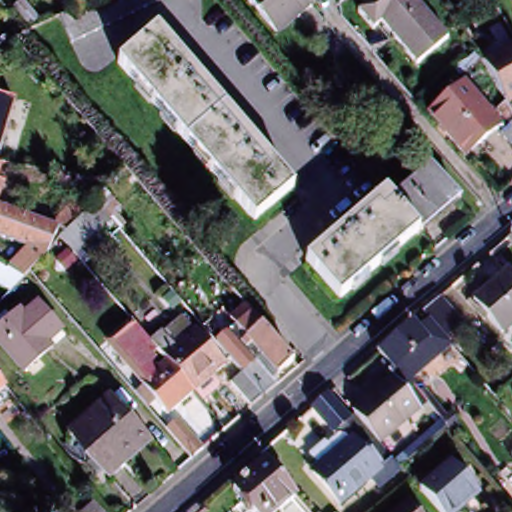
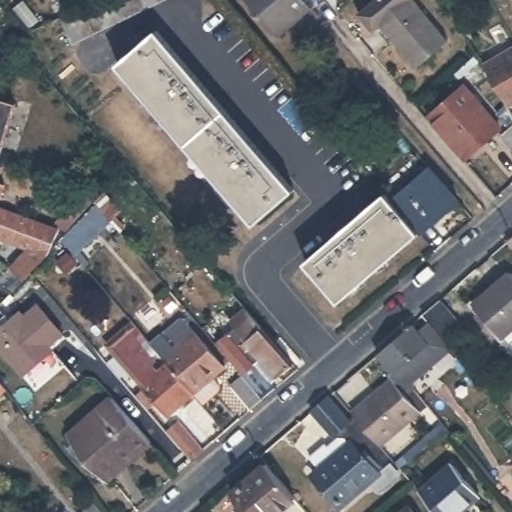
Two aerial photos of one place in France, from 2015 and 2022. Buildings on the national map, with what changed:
unchanged [(305,27),(301,22),(283,39),(251,1),(251,0),(306,0),(312,7),(318,16),(305,27)]
unchanged [(312,7),(306,0),(320,0),(312,7)]
unchanged [(448,40),(417,67),(381,25),(373,32),(358,15),(376,0),(414,0),(448,40)]
unchanged [(23,2),(39,22),(29,30),(12,10),(23,2)]
unchanged [(296,191),(257,225),(120,65),(159,31),(296,191)]
unchanged [(490,63),(490,62),(512,51),(512,101),(490,63)]
unchanged [(496,96),(494,97),(487,85),(497,80),(512,105),(512,124),(496,96)]
unchanged [(506,129),(472,157),(436,114),(469,85),(506,129)]
unchanged [(0,153),(0,102),(14,107),(0,153)]
unchanged [(506,134),(512,129),(512,140),(506,134)]
unchanged [(0,184),(0,166),(6,167),(0,184)]
unchanged [(430,170),(458,202),(420,235),(392,202),(430,170)]
unchanged [(0,207),(0,184),(8,187),(0,207)]
unchanged [(77,257),(64,241),(70,234),(71,233),(57,228),(84,195),(96,205),(107,192),(126,214),(120,219),(129,230),(123,236),(110,220),(82,252),(93,264),(88,268),(77,257)]
unchanged [(392,202),(420,235),(343,303),(310,265),(388,197),(392,202)]
unchanged [(14,297),(8,293),(8,292),(0,287),(0,267),(11,273),(31,250),(0,238),(0,210),(11,215),(63,233),(62,234),(49,257),(34,275),(14,297)]
unchanged [(503,335),(476,303),(512,271),(512,344),(503,335)]
unchanged [(417,389),(416,390),(408,397),(395,381),(392,377),(395,374),(390,368),(380,357),(415,327),(421,332),(431,324),(425,317),(443,302),(459,322),(466,330),(449,345),(453,350),(413,383),(417,389)]
unchanged [(56,348),(27,372),(0,340),(0,330),(6,326),(1,320),(10,312),(15,317),(24,310),(28,315),(41,303),(65,332),(52,342),(56,348)]
unchanged [(247,373),(218,341),(239,323),(234,318),(249,305),(265,323),(281,342),(297,361),(282,373),(275,380),(280,385),(267,396),(254,407),(234,384),(247,373)]
unchanged [(172,360),(167,355),(181,343),(168,330),(185,315),(200,333),(228,365),(197,390),(172,360)]
unchanged [(115,341),(138,321),(167,355),(172,360),(149,380),(115,341)]
unchanged [(171,414),(145,383),(149,380),(172,360),(197,390),(171,414)]
unchanged [(0,379),(10,392),(0,399),(0,379)]
unchanged [(459,431),(454,435),(452,433),(450,431),(446,427),(426,402),(430,407),(383,448),(361,422),(359,421),(355,416),(395,381),(408,397),(416,390),(425,402),(431,397),(459,431)]
unchanged [(354,425),(359,421),(361,422),(383,448),(390,456),(398,465),(395,467),(401,475),(382,490),(375,482),(344,508),(316,476),(322,470),(312,458),(328,445),(331,447),(340,440),(339,439),(338,439),(315,413),(332,399),(354,425)]
unchanged [(108,481),(69,435),(110,400),(150,446),(108,481)]
unchanged [(177,424),(197,447),(186,456),(166,433),(177,424)]
unchanged [(426,452),(421,446),(437,432),(442,437),(427,452),(426,452)]
unchanged [(482,494),(461,512),(443,512),(423,490),(455,462),(482,494)]
unchanged [(238,490),(234,486),(234,485),(238,482),(242,487),(265,467),(294,501),(281,512),(248,512),(233,494),(238,490)]
unchanged [(403,512),(412,503),(420,512),(403,512)]
unchanged [(100,512),(87,512),(95,506),(100,512)]

